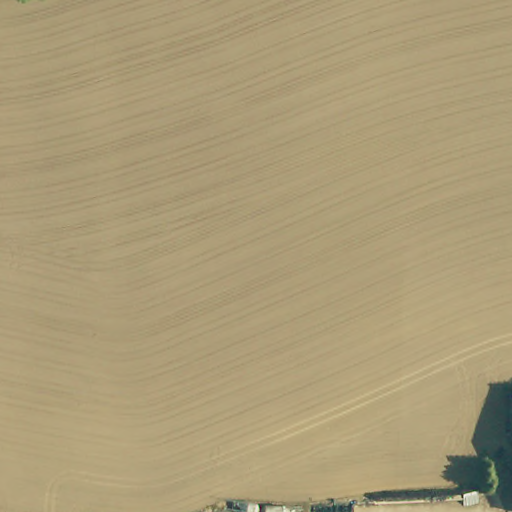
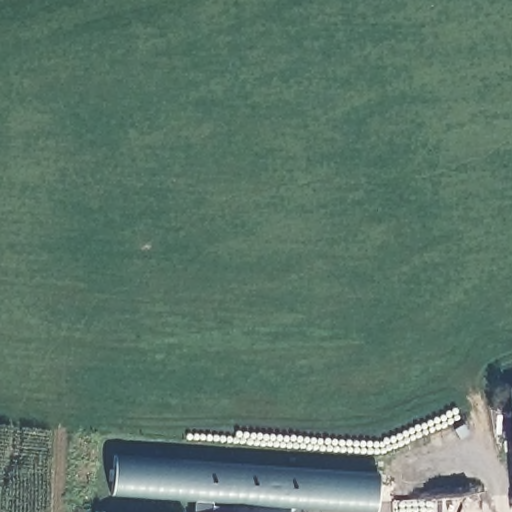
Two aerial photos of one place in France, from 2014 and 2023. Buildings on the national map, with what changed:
unchanged [(510,396),(512,395),(512,412),(510,396)]
new [(347,512),(113,497),(116,457),(379,474),(379,512),(347,512)]

